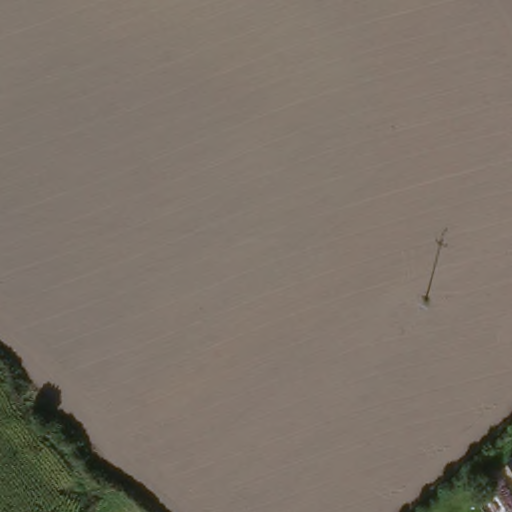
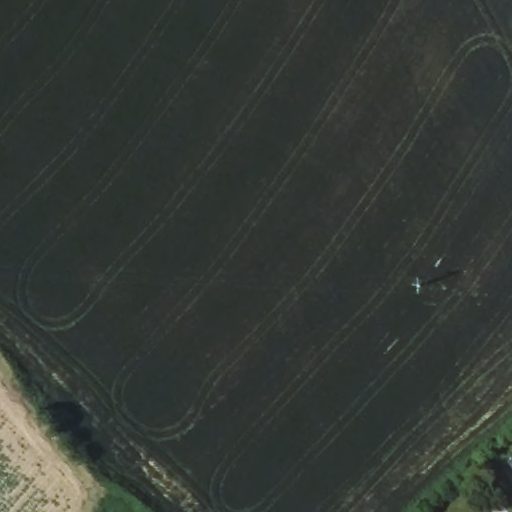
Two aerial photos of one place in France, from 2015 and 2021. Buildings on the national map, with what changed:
unchanged [(512,475),(504,467),(512,460),(512,475)]

